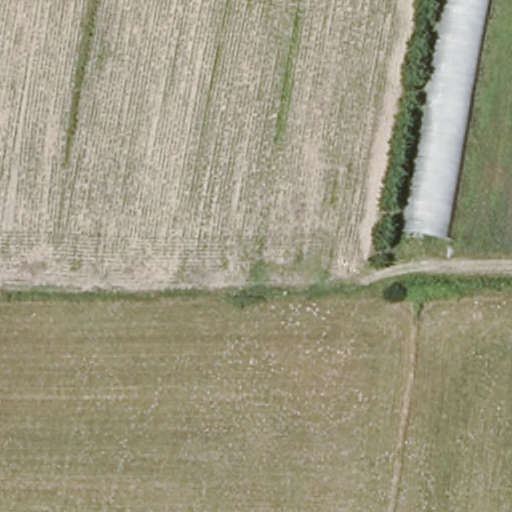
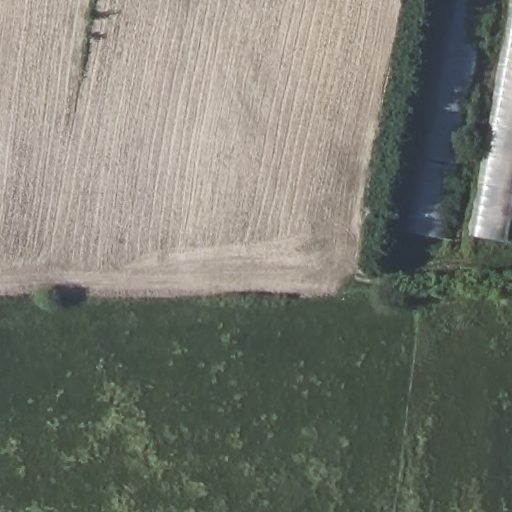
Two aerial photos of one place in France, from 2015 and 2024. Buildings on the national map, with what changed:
unchanged [(445,238),(402,232),(442,0),(489,0),(445,238)]
new [(469,235),(510,0),(512,0),(512,220),(508,241),(469,235)]

